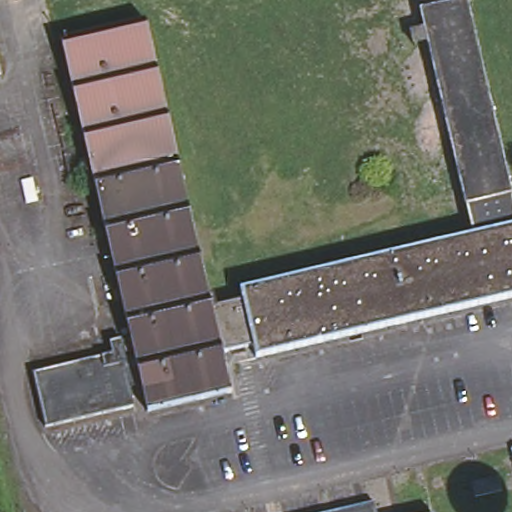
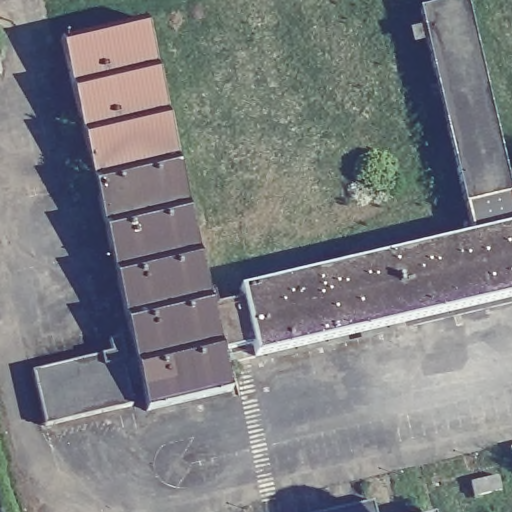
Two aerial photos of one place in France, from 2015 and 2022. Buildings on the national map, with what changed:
unchanged [(464,5),(512,204),(464,216),(416,17),(464,5)]
unchanged [(59,47),(140,26),(145,45),(64,65),(59,47)]
unchanged [(145,45),(173,160),(92,180),(64,65),(145,45)]
unchanged [(173,160),(210,310),(222,358),(230,394),(149,415),(146,404),(144,393),(130,340),(92,180),(173,160)]
unchanged [(512,231),(470,241),(464,216),(512,204),(512,231)]
unchanged [(252,351),(222,358),(210,310),(240,302),(239,294),(470,241),(512,231),(512,303),(254,362),(252,351)]
unchanged [(139,406),(43,428),(41,421),(30,377),(112,357),(110,345),(130,340),(144,393),(135,395),(137,398),(139,406)]
unchanged [(495,477),(497,491),(470,497),(467,483),(495,477)]
unchanged [(373,506),(374,512),(344,512),(373,506)]

